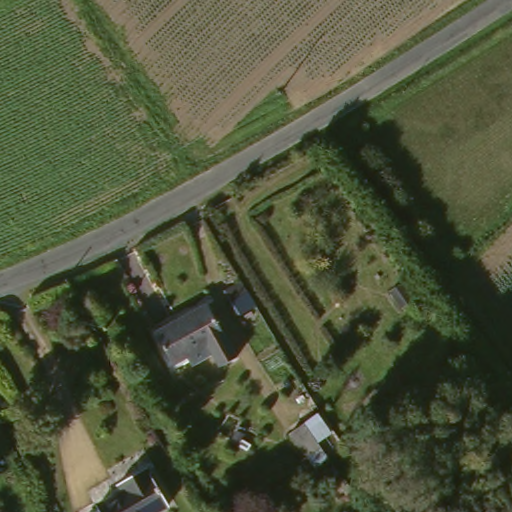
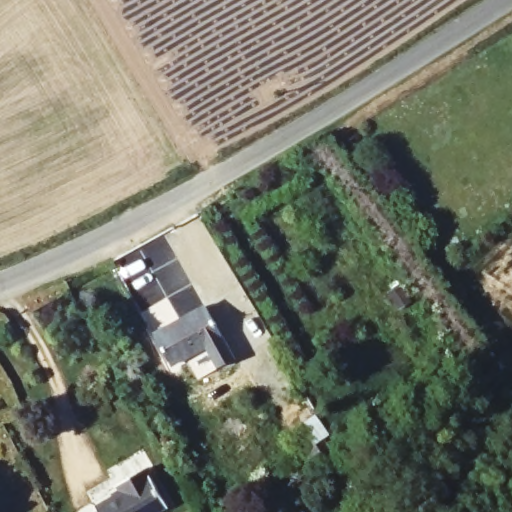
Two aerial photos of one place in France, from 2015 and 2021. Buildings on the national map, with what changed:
unchanged [(155,340),(203,311),(234,357),(217,368),(205,350),(173,368),(155,340)]
unchanged [(318,423),(334,447),(316,460),(300,436),(318,423)]
unchanged [(102,502),(130,488),(126,480),(155,467),(174,510),(170,512),(101,512),(106,510),(102,502)]

